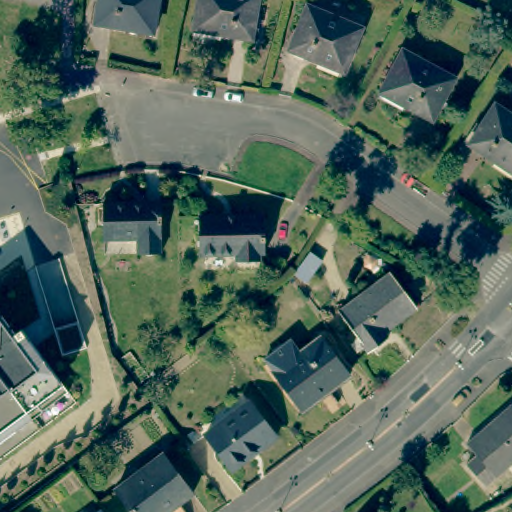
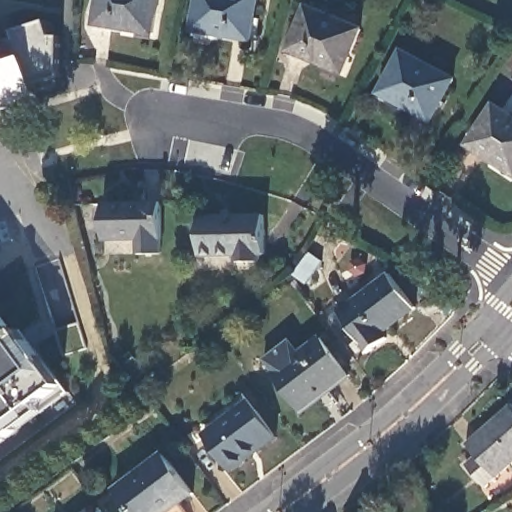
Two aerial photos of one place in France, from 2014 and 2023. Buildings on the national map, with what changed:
unchanged [(153,34),(94,24),(98,0),(159,0),(153,34)]
unchanged [(249,40),(193,31),(199,0),(256,0),(249,40)]
unchanged [(359,30),(341,74),(288,52),(306,9),(359,30)]
new [(16,40),(14,30),(46,20),(51,37),(59,37),(58,68),(60,75),(34,84),(39,97),(0,111),(0,24),(6,42),(16,40)]
unchanged [(452,80),(430,121),(379,94),(401,52),(452,80)]
unchanged [(512,118),(512,173),(468,145),(493,106),(512,118)]
unchanged [(160,204),(160,255),(137,255),(137,241),(102,241),(102,204),(160,204)]
unchanged [(263,217),(264,256),(258,256),(258,264),(234,265),(234,256),(198,257),(197,219),(263,217)]
unchanged [(384,270),(409,303),(378,329),(381,333),(361,348),(331,309),(384,270)]
unchanged [(0,347),(0,324),(11,339),(0,347)]
unchanged [(266,360),(291,340),(300,353),(321,338),(349,375),(300,413),(271,375),(275,372),(266,360)]
unchanged [(0,355),(1,357),(11,350),(18,360),(34,348),(67,393),(40,414),(16,431),(0,444),(0,355)]
unchanged [(249,403),(276,438),(257,452),(254,449),(229,468),(205,437),(249,403)]
unchanged [(506,466),(483,485),(466,465),(476,456),(465,444),(510,406),(512,408),(512,474),(506,466)]
unchanged [(169,512),(130,512),(115,492),(163,455),(192,495),(169,512)]

